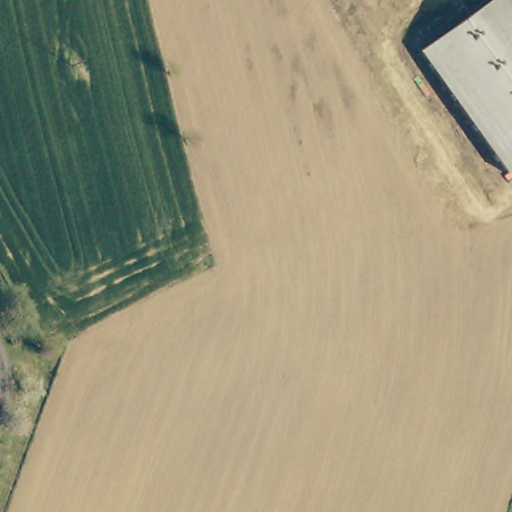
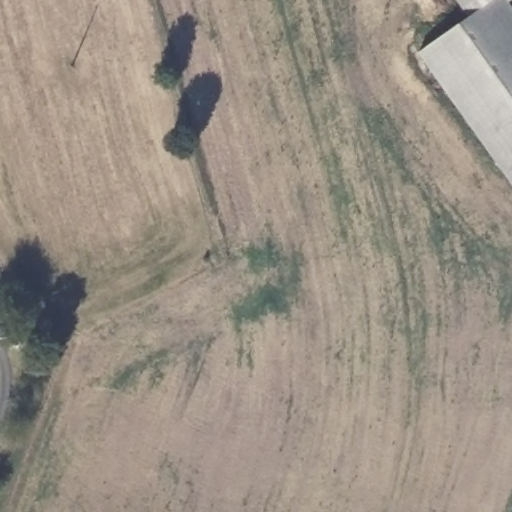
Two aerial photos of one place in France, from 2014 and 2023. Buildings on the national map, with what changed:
unchanged [(505,0),(512,9),(512,173),(507,177),(420,54),(497,0),(505,0)]
unchanged [(457,0),(497,0),(471,18),(457,0)]
unchanged [(505,0),(510,0),(507,2),(505,0)]

